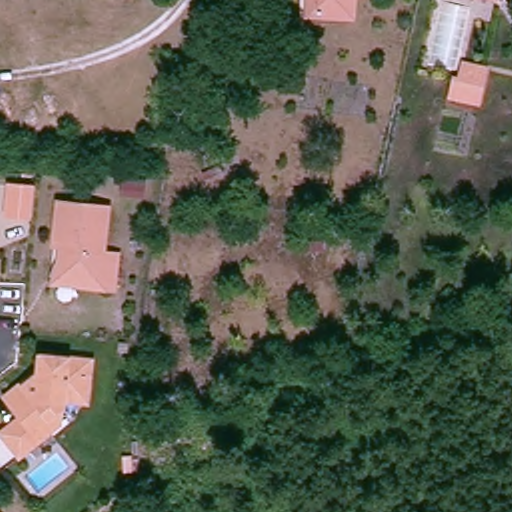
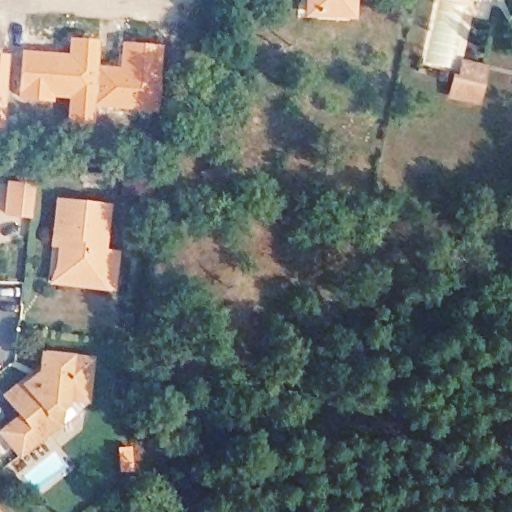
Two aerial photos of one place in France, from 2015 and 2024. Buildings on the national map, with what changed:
unchanged [(350,20),(310,15),(312,0),(353,0),(350,20)]
new [(20,50),(65,54),(68,37),(98,40),(96,65),(92,107),(95,108),(92,127),(62,124),(65,100),(52,98),(51,104),(16,100),(20,50)]
new [(96,65),(117,67),(120,42),(161,46),(155,115),(95,108),(92,107),(96,65)]
new [(0,128),(0,55),(7,56),(0,128)]
unchanged [(482,107),(446,102),(450,79),(458,80),(459,62),(486,67),(482,107)]
unchanged [(5,184),(30,186),(27,216),(2,214),(5,184)]
unchanged [(51,283),(55,239),(59,203),(108,207),(104,252),(119,254),(116,290),(100,288),(74,286),(51,283)]
unchanged [(59,428),(30,453),(11,431),(30,414),(16,397),(46,371),(49,352),(98,359),(93,400),(71,397),(70,404),(77,413),(59,428)]

